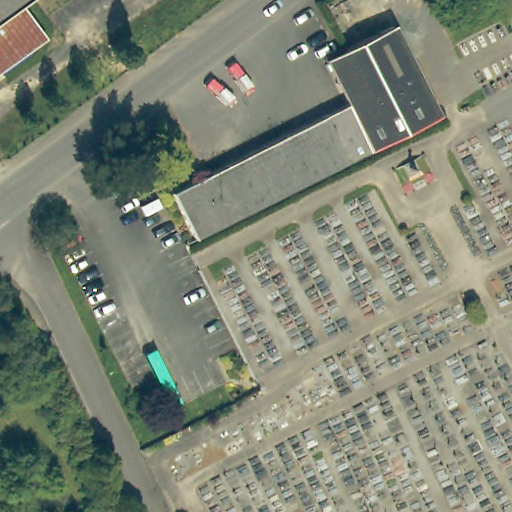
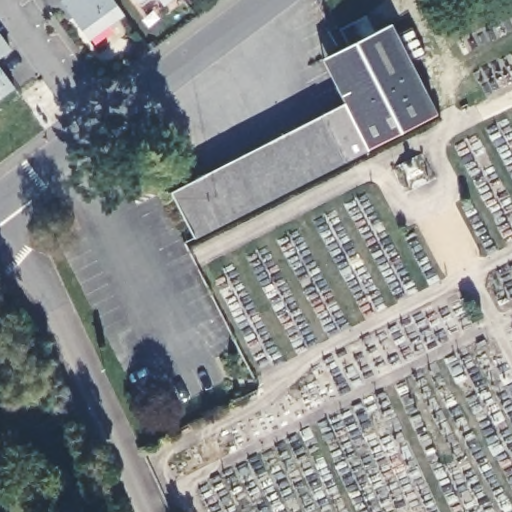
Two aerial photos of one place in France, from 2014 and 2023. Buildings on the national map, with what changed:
demolished [(15,6),(38,37),(33,45),(0,69),(0,0),(24,0),(15,6)]
new [(115,5),(124,17),(90,40),(81,28),(60,1),(62,0),(112,0),(115,5)]
new [(141,6),(139,2),(137,0),(149,0),(141,6)]
new [(165,6),(159,0),(172,0),(165,6)]
unchanged [(387,20),(437,108),(199,242),(174,198),(346,101),(365,91),(339,47),(387,20)]
new [(13,50),(0,60),(0,35),(1,34),(13,50)]
unchanged [(321,57),(339,47),(365,91),(346,101),(321,57)]
new [(15,88),(0,99),(0,67),(15,88)]

